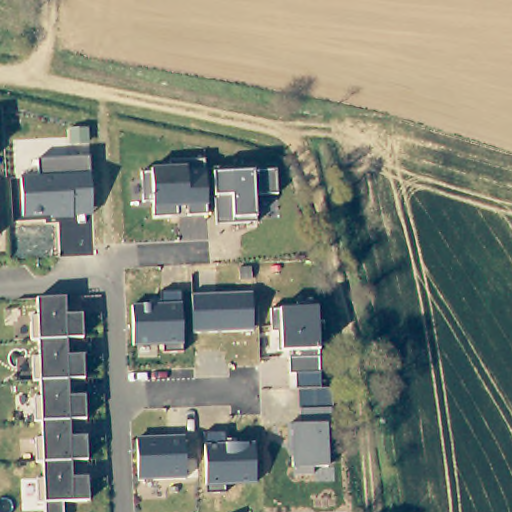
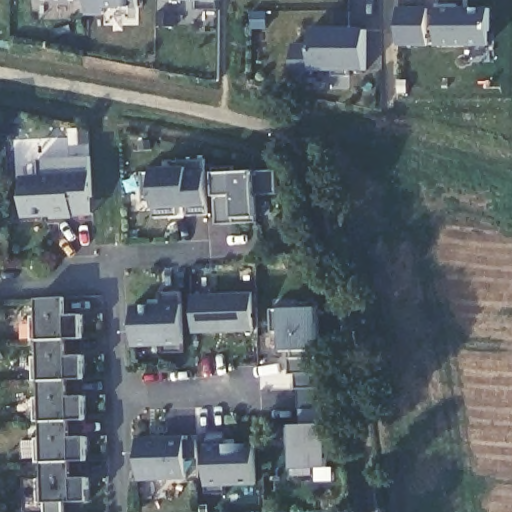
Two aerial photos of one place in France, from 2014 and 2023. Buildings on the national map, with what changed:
new [(140,7),(104,8),(102,16),(86,15),(87,2),(36,2),(36,0),(139,0),(140,7)]
new [(220,0),(220,10),(198,10),(197,1),(161,0),(219,0),(220,0)]
new [(437,46),(436,3),(458,3),(458,8),(489,8),(490,46),(437,46)]
new [(367,28),(367,71),(350,70),(349,77),(333,77),(332,70),(314,70),(313,78),(293,77),(294,43),(312,44),(312,28),(367,28)]
unchanged [(40,176),(39,160),(90,157),(91,174),(93,216),(53,218),(53,216),(25,217),(23,177),(40,176)]
unchanged [(171,167),(170,162),(206,160),(206,170),(207,205),(207,215),(188,215),(188,206),(179,207),(180,217),(154,219),(154,208),(153,200),(143,201),(141,174),(152,173),(153,168),(171,167)]
unchanged [(254,172),(277,170),(278,194),(255,195),(256,217),(256,223),(218,224),(216,197),(216,174),(254,172)]
unchanged [(160,304),(160,292),(182,293),(182,304),(184,352),(164,353),(163,346),(135,347),(134,306),(160,304)]
unchanged [(66,375),(67,392),(83,391),(84,415),(68,416),(69,432),(84,432),(85,456),(70,457),(70,473),(86,473),(86,497),(61,498),(61,512),(42,512),(42,498),(35,499),(34,474),(41,474),(41,458),(34,458),(33,434),(40,433),(39,417),(32,417),(31,393),(38,393),(38,376),(31,376),(30,352),(36,352),(36,335),(31,336),(29,336),(28,312),(36,311),(35,294),(64,293),(64,310),(80,310),(81,334),(65,334),(65,335),(66,351),(81,351),(82,375),(66,375)]
unchanged [(253,293),(254,330),(194,333),(193,295),(253,293)]
unchanged [(319,307),(321,349),(321,373),(321,388),(334,388),(336,408),(332,408),(332,426),(328,425),(330,467),(312,468),(312,475),(294,476),(294,469),(292,425),(301,424),(300,409),(299,389),(296,389),(296,374),(291,374),(290,351),(282,351),(278,351),(277,332),(272,332),(271,309),(281,308),(319,307)]
unchanged [(205,434),(226,434),(227,444),(256,443),(257,484),(225,486),(225,494),(207,494),(207,485),(206,445),(205,434)]
unchanged [(185,436),(187,479),(139,481),(138,438),(185,436)]

